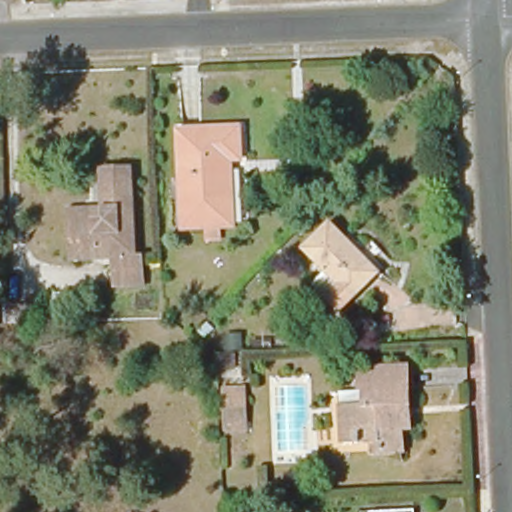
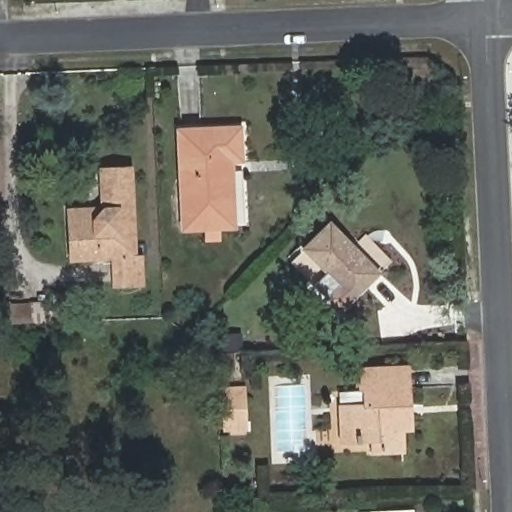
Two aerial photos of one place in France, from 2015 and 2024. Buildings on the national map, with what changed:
unchanged [(180,131),(241,128),(242,161),(232,161),(234,226),(184,228),(180,131)]
unchanged [(127,169),(130,257),(139,257),(139,286),(110,287),(109,259),(66,260),(65,221),(64,209),(99,208),(97,171),(127,169)]
unchanged [(305,250),(331,224),(380,272),(340,312),(315,286),(328,273),(305,250)]
unchanged [(32,302),(32,320),(10,321),(9,303),(32,302)]
unchanged [(212,352),(224,351),(223,333),(245,333),(246,351),(234,352),(235,370),(214,370),(212,352)]
unchanged [(335,407),(360,405),(360,389),(356,389),(355,370),(402,367),(405,430),(397,430),(398,451),(375,452),(375,441),(337,442),(335,407)]
unchanged [(220,388),(245,387),(248,431),(223,432),(220,388)]

